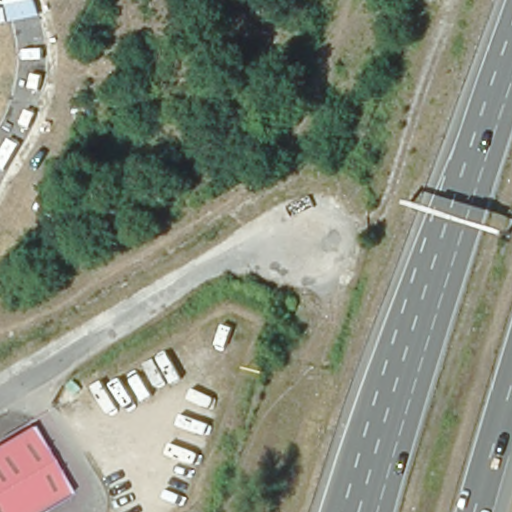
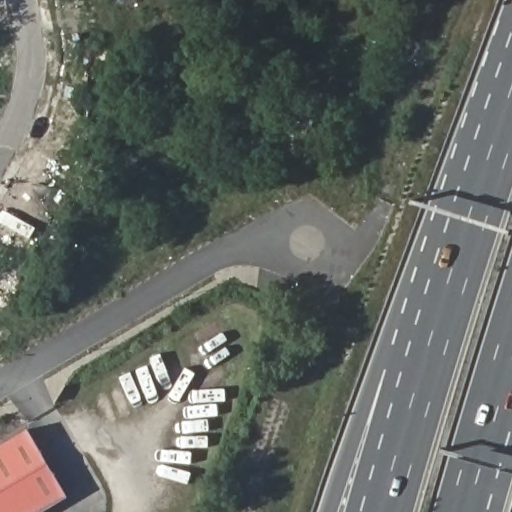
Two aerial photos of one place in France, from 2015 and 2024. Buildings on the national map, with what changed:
unchanged [(0,512),(0,448),(25,433),(65,501),(46,512),(0,512)]

